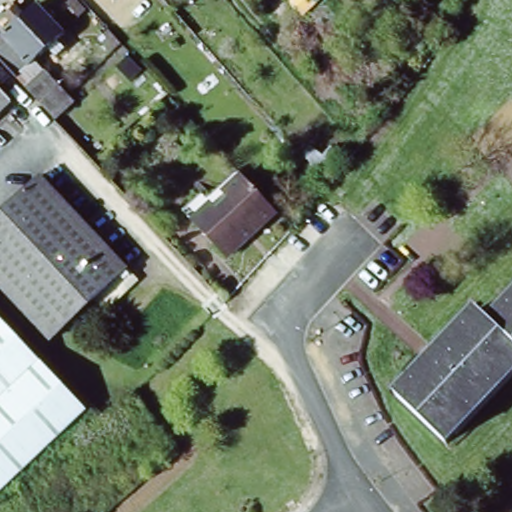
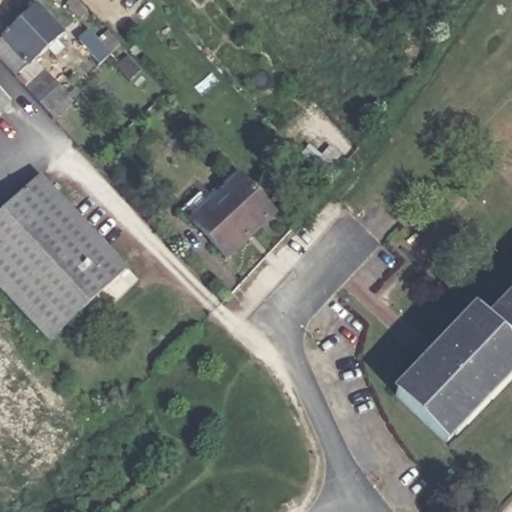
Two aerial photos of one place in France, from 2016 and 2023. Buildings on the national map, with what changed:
unchanged [(21,80),(0,57),(0,44),(39,7),(67,36),(21,80)]
unchanged [(124,42),(115,32),(130,18),(140,27),(124,42)]
unchanged [(73,103),(61,115),(32,85),(45,74),(67,96),(73,103)]
unchanged [(0,113),(0,90),(12,102),(0,113)]
unchanged [(130,267),(52,340),(0,285),(0,216),(42,175),(130,267)]
unchanged [(235,267),(194,223),(213,205),(244,176),(251,184),(285,220),(235,267)]
unchanged [(473,316),(482,307),(494,318),(502,310),(497,307),(512,292),(512,384),(472,425),(467,421),(447,441),(399,393),(407,383),(403,380),(469,312),(473,316)]
demolished [(0,492),(0,311),(91,406),(0,492)]

